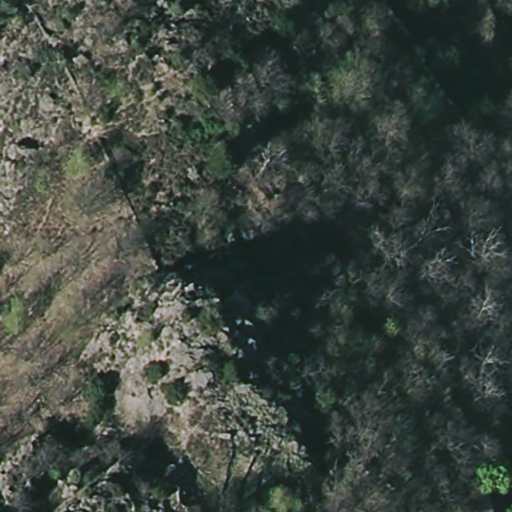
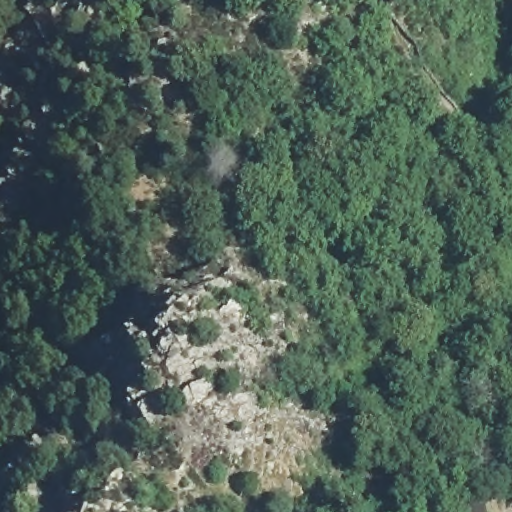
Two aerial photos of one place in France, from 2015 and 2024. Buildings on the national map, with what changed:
unchanged [(491,494),(493,512),(462,512),(461,496),(491,494)]

